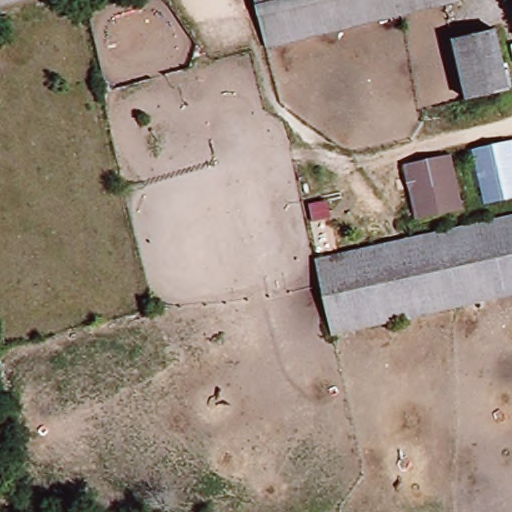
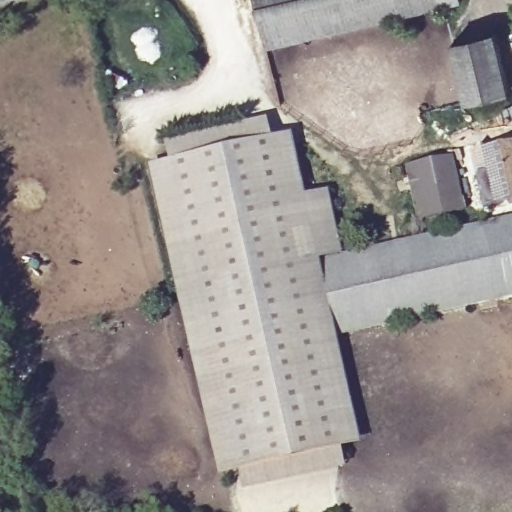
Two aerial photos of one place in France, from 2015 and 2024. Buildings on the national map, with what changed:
unchanged [(265,53),(251,0),(457,0),(458,4),(265,53)]
unchanged [(467,104),(453,45),(494,35),(509,93),(467,104)]
new [(165,163),(160,141),(264,119),(269,140),(288,135),(302,196),(325,190),(342,260),(320,265),(338,342),(359,444),(337,451),(341,468),(239,491),(234,471),(215,476),(146,166),(165,163)]
unchanged [(485,207),(472,153),(512,143),(512,201),(485,207)]
unchanged [(405,170),(452,160),(463,214),(416,224),(405,170)]
unchanged [(338,342),(320,265),(512,219),(512,300),(338,342)]

